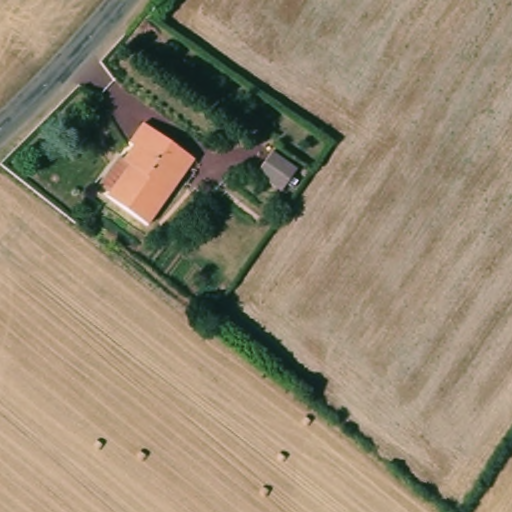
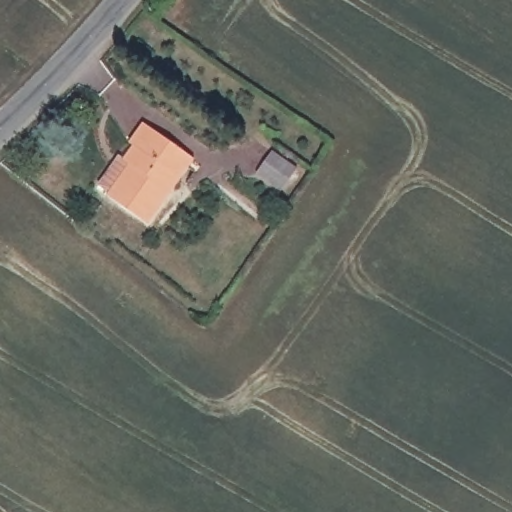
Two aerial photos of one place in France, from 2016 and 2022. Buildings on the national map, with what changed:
unchanged [(116,161),(127,145),(122,140),(138,121),(188,162),(140,224),(100,194),(103,189),(94,181),(112,159),(116,161)]
unchanged [(266,151),(291,169),(274,192),(248,174),(266,151)]

